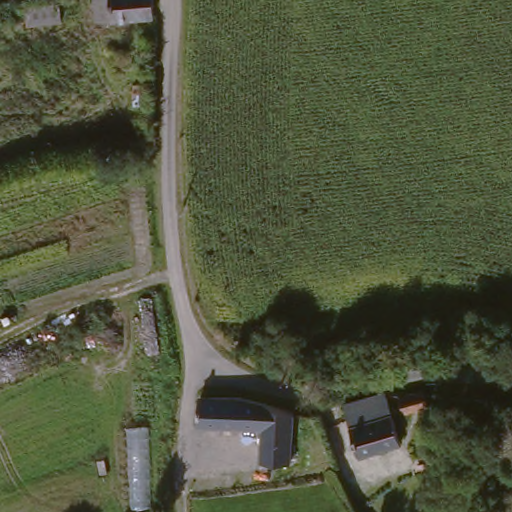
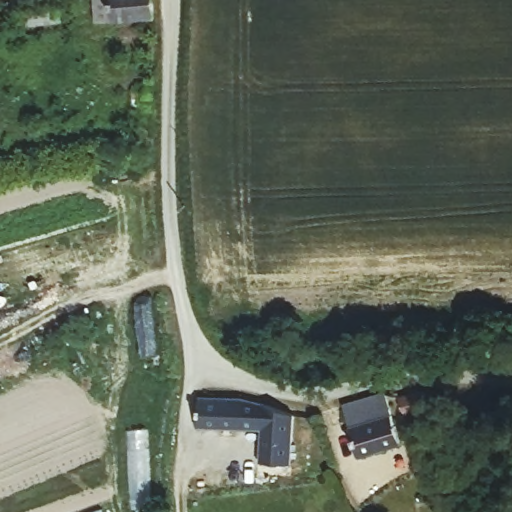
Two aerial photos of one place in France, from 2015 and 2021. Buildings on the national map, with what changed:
unchanged [(93,0),(154,0),(157,16),(99,25),(93,0)]
unchanged [(26,28),(25,12),(40,4),(60,1),(62,22),(42,25),(42,26),(26,28)]
unchanged [(395,415),(388,394),(389,393),(415,385),(420,405),(421,406),(395,415)]
unchanged [(352,460),(336,411),(377,397),(393,447),(352,460)]
unchanged [(282,410),(312,420),(312,468),(280,468),(280,435),(216,435),(216,405),(260,405),(282,410)]

